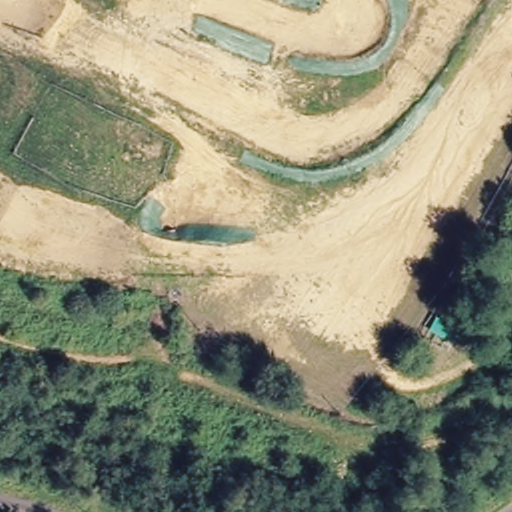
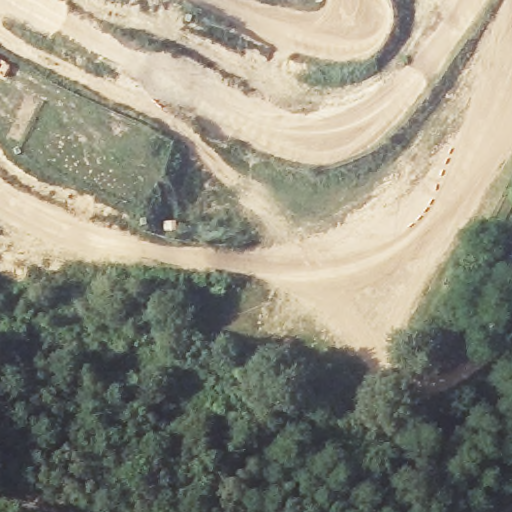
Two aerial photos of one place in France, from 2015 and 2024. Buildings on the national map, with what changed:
unchanged [(458,330),(447,356),(420,342),(435,317),(458,330)]

